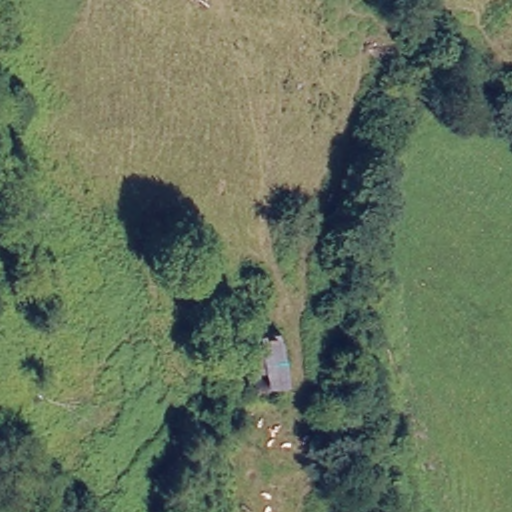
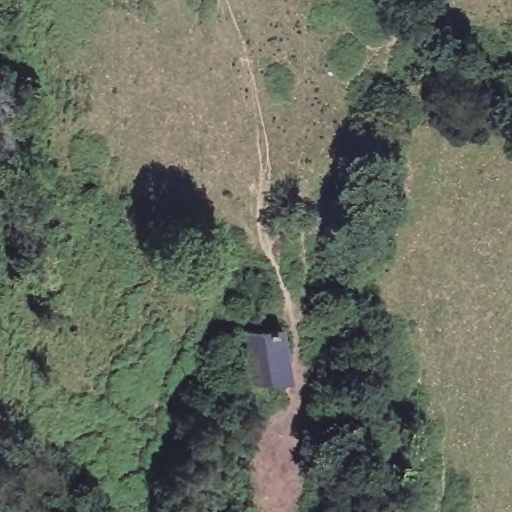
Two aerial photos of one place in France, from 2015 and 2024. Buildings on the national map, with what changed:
unchanged [(244,336),(280,331),(285,382),(249,387),(244,336)]

